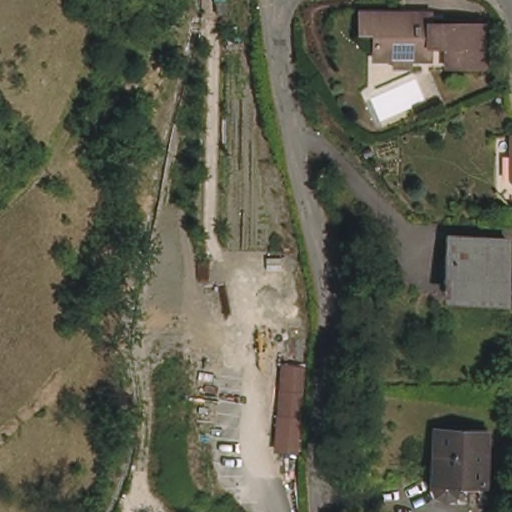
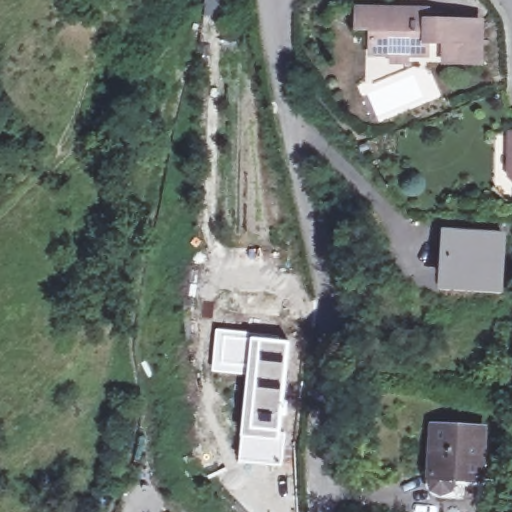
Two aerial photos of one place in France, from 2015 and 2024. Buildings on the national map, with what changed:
new [(207,13),(209,0),(233,0),(232,15),(207,13)]
unchanged [(386,78),(387,68),(369,67),(370,47),(355,46),(357,24),(425,26),(425,34),(478,36),(477,80),(440,79),(443,59),(427,57),(425,71),(404,68),(403,78),(386,78)]
unchanged [(441,295),(442,283),(444,239),(506,244),(505,285),(503,300),(441,295)]
new [(238,463),(241,438),(247,376),(212,371),(217,330),(279,336),(278,342),(290,343),(280,442),(283,443),(282,467),(238,463)]
demolished [(302,363),(297,448),(270,448),(274,360),(302,363)]
unchanged [(457,486),(428,484),(431,425),(487,429),(483,468),(482,489),(457,486)]

